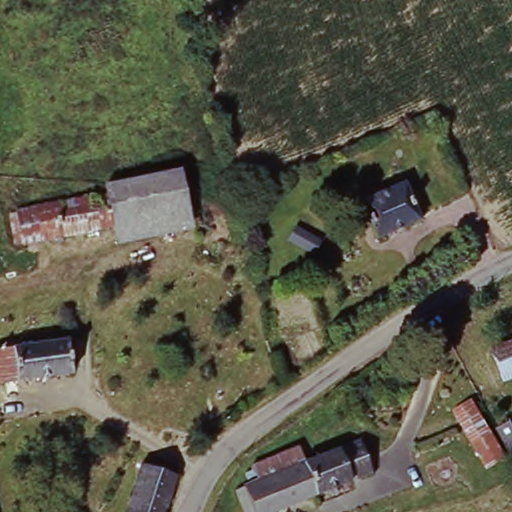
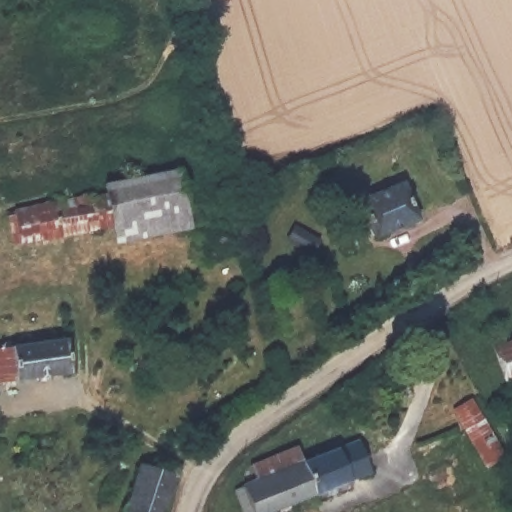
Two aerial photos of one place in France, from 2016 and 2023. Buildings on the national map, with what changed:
unchanged [(89,189),(185,169),(193,214),(98,234),(92,201),(89,189)]
unchanged [(409,185),(424,220),(380,240),(365,205),(409,185)]
unchanged [(14,217),(27,214),(92,201),(98,234),(32,247),(20,249),(14,217)]
unchanged [(64,378),(0,387),(0,352),(60,343),(64,378)]
unchanged [(508,384),(497,350),(512,345),(512,383),(508,384)]
unchanged [(472,404),(503,458),(482,470),(451,414),(472,404)]
unchanged [(506,423),(512,434),(512,455),(507,457),(493,430),(506,423)]
unchanged [(254,474),(360,446),(371,485),(264,512),(250,512),(242,477),(254,474)]
unchanged [(180,482),(170,512),(130,512),(144,469),(180,482)]

